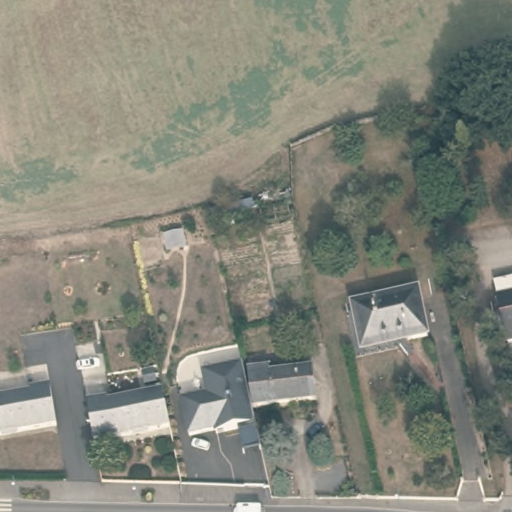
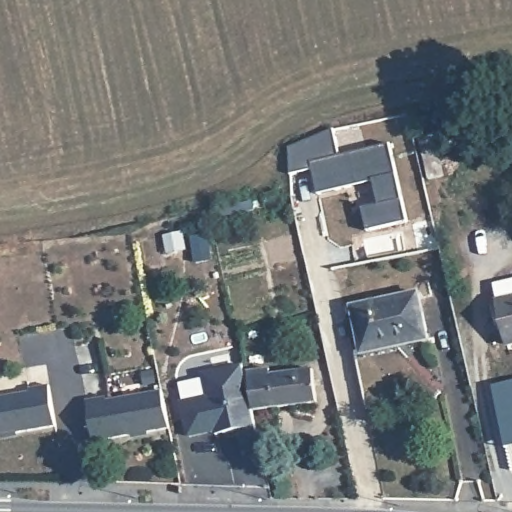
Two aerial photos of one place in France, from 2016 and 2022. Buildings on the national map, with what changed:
new [(369,230),(364,208),(379,204),(373,180),(318,194),(312,168),(291,173),(290,148),(334,129),(340,154),(391,143),(409,222),(369,230)]
unchanged [(204,240),(174,247),(171,232),(201,226),(204,240)]
new [(358,271),(353,251),(384,244),(381,232),(406,226),(414,257),(358,271)]
unchanged [(494,282),(512,278),(512,343),(509,344),(494,282)]
unchanged [(428,337),(410,343),(400,334),(396,341),(361,347),(353,303),(418,290),(428,337)]
unchanged [(244,366),(244,370),(252,408),(256,426),(189,438),(183,399),(208,394),(205,374),(244,366)]
unchanged [(269,367),(271,372),(312,366),(316,399),(252,408),(244,370),(269,367)]
new [(492,384),(512,379),(512,446),(507,448),(492,384)]
unchanged [(31,389),(32,386),(51,383),(57,424),(0,431),(0,393),(31,389)]
unchanged [(169,426),(95,440),(87,399),(105,396),(107,399),(161,387),(169,426)]

